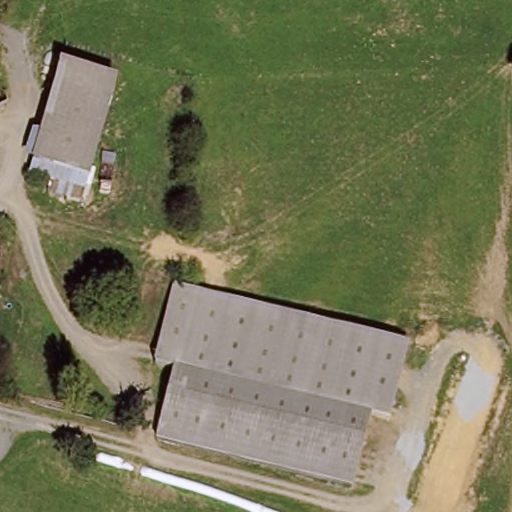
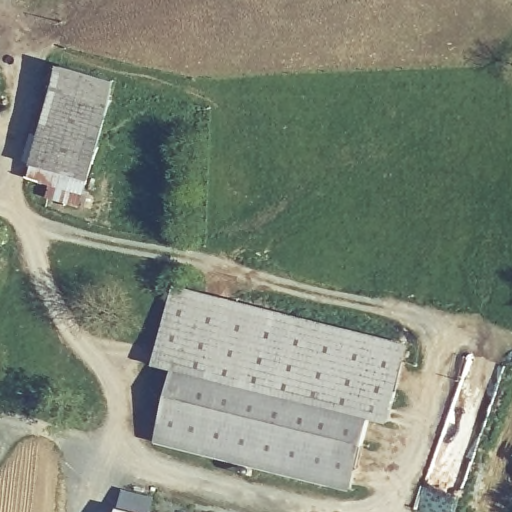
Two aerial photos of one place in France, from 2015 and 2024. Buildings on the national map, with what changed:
unchanged [(34,180),(65,68),(121,84),(87,196),(34,180)]
demolished [(0,102),(0,70),(8,72),(0,102)]
unchanged [(377,419),(360,491),(165,443),(183,372),(164,368),(182,290),(400,342),(416,346),(413,360),(397,425),(377,419)]
new [(154,496),(151,512),(114,512),(115,506),(120,488),(154,496)]

